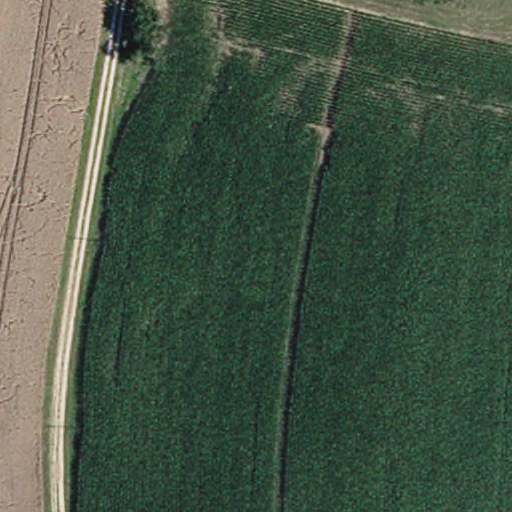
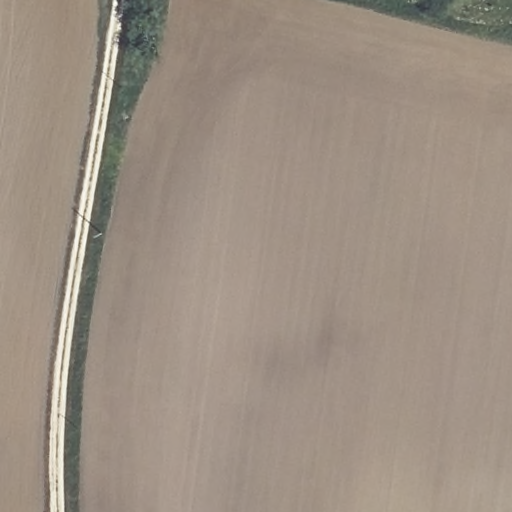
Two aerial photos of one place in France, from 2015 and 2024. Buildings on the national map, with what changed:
[]

